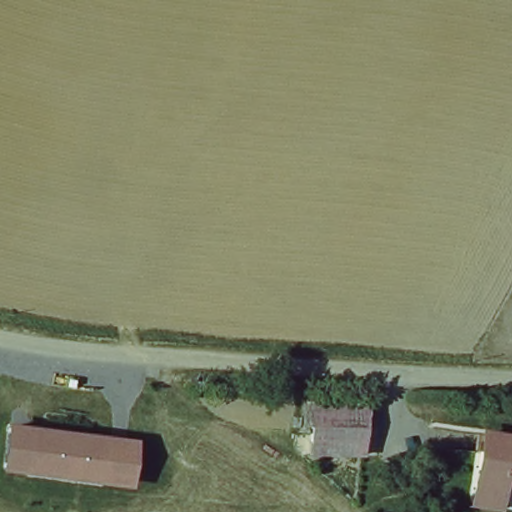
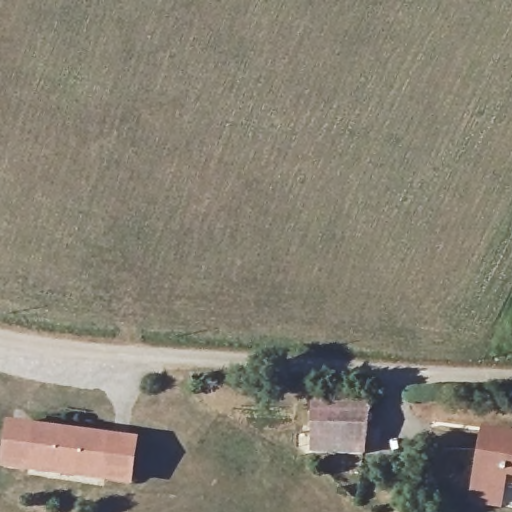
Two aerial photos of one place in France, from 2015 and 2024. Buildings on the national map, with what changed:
unchanged [(363,450),(316,446),(319,405),(370,409),(363,450)]
unchanged [(131,485),(2,472),(5,422),(136,437),(131,485)]
unchanged [(512,432),(512,479),(511,478),(507,501),(476,499),(482,430),(512,432)]

